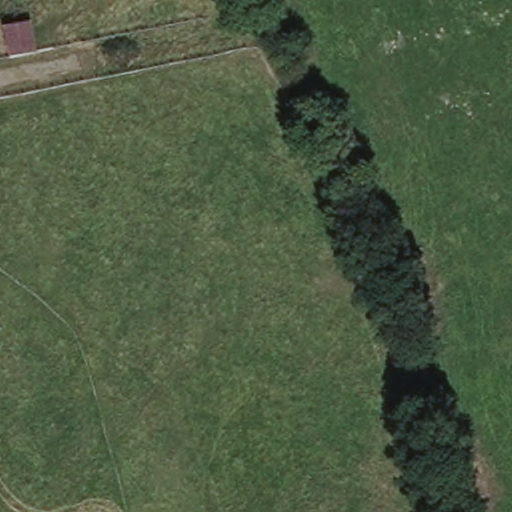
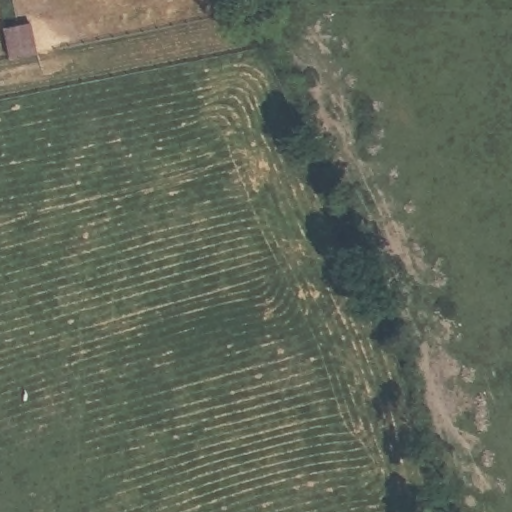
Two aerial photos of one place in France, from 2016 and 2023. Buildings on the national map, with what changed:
unchanged [(31,20),(36,50),(10,55),(4,25),(31,20)]

